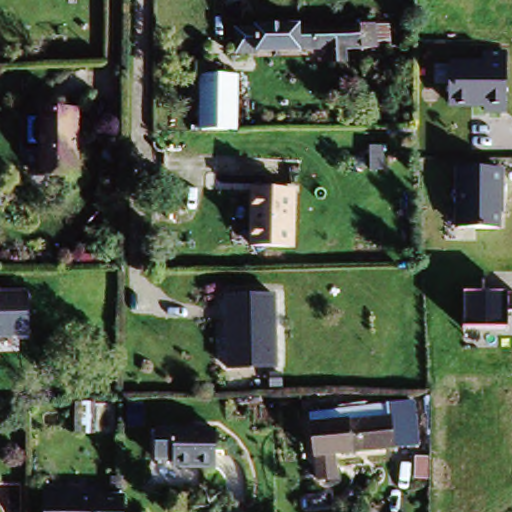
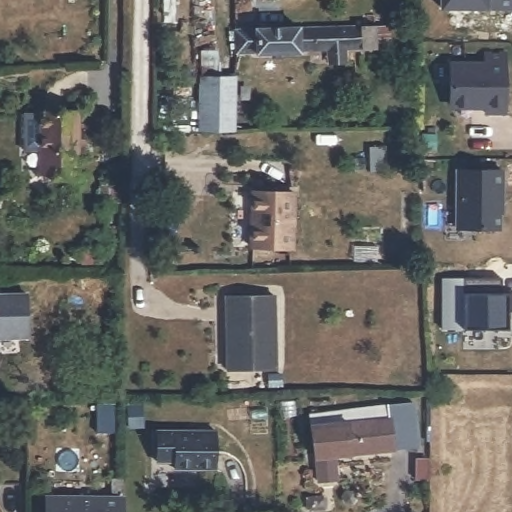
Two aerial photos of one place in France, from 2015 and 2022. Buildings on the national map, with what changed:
new [(439,0),(512,0),(512,7),(439,7),(439,0)]
unchanged [(249,26),(251,26),(251,29),(380,26),(380,49),(305,52),(241,54),(240,42),(237,42),(237,41),(240,41),(240,30),(249,29),(249,26)]
unchanged [(507,114),(485,115),(484,109),(448,107),(447,65),(506,64),(507,114)]
unchanged [(233,136),(202,137),(202,83),(202,72),(218,72),(218,83),(234,83),(233,136)]
unchanged [(45,156),(45,117),(81,117),(81,178),(52,177),(45,177),(45,156)]
unchanged [(458,168),(503,170),(502,230),(457,227),(458,168)]
unchanged [(299,192),(297,248),(255,247),(257,192),(299,192)]
unchanged [(505,292),(512,291),(512,313),(507,313),(507,329),(464,328),(462,292),(505,292)]
unchanged [(279,301),(280,373),(232,375),(232,331),(231,317),(231,302),(279,301)]
unchanged [(320,457),(314,415),(392,405),(418,402),(422,447),(320,457)]
unchanged [(220,436),(219,473),(179,473),(179,467),(162,467),(162,435),(220,436)]
unchanged [(117,502),(117,485),(127,485),(127,502),(126,512),(50,512),(50,502),(117,502)]

